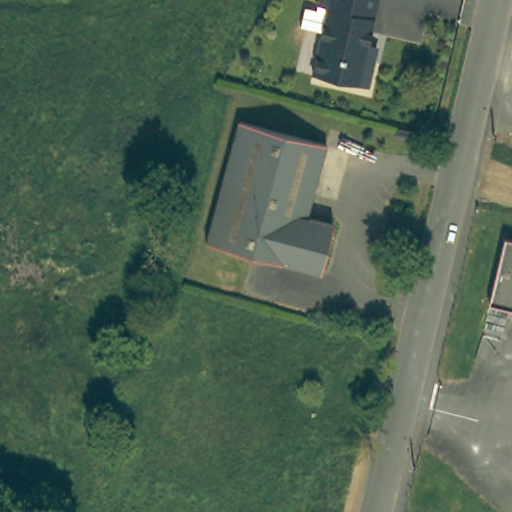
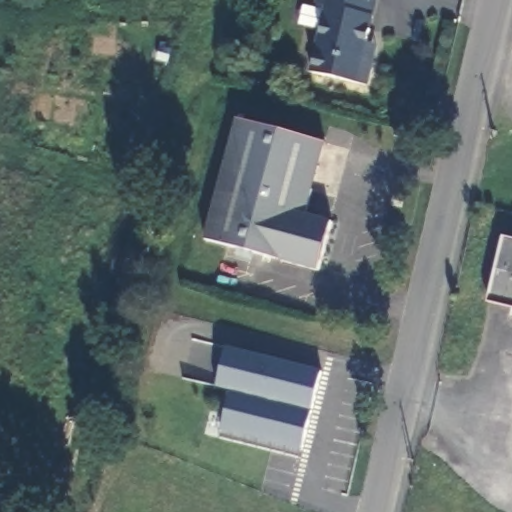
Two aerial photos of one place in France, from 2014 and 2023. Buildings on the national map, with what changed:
unchanged [(368,82),(313,70),(328,4),(319,1),(319,0),(377,0),(371,26),(372,27),(370,38),(368,38),(368,40),(377,42),(374,57),(368,82)]
unchanged [(329,227),(318,270),(202,240),(236,117),(323,139),(303,220),(329,227)]
unchanged [(395,134),(398,122),(416,126),(413,138),(395,134)]
unchanged [(487,305),(503,241),(512,244),(512,311),(487,305)]
unchanged [(509,323),(512,313),(512,324),(509,323)]
new [(301,451),(221,431),(231,391),(217,387),(227,347),(321,370),(301,451)]

